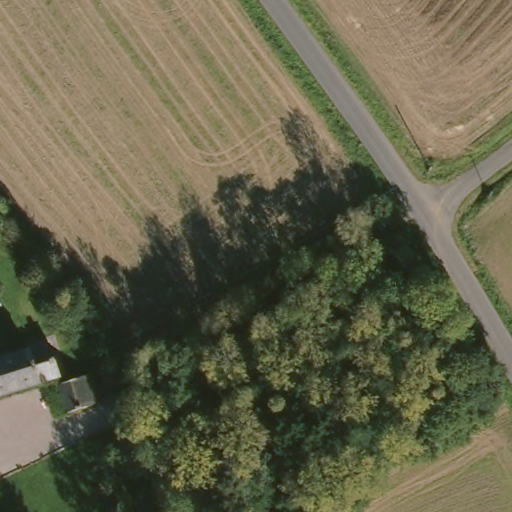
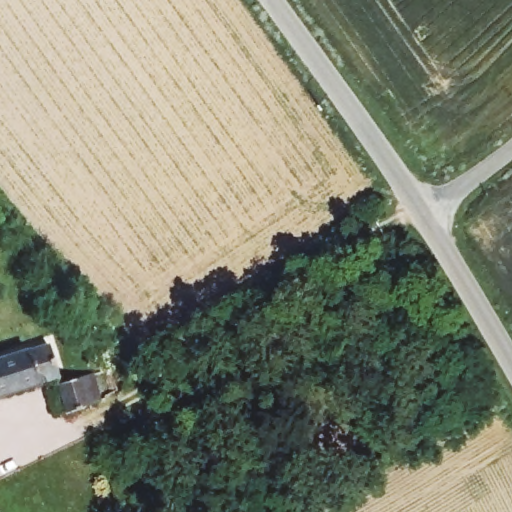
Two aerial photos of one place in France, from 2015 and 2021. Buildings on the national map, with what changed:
unchanged [(0,354),(39,340),(51,379),(0,397),(0,354)]
unchanged [(52,384),(86,376),(94,405),(61,411),(52,384)]

